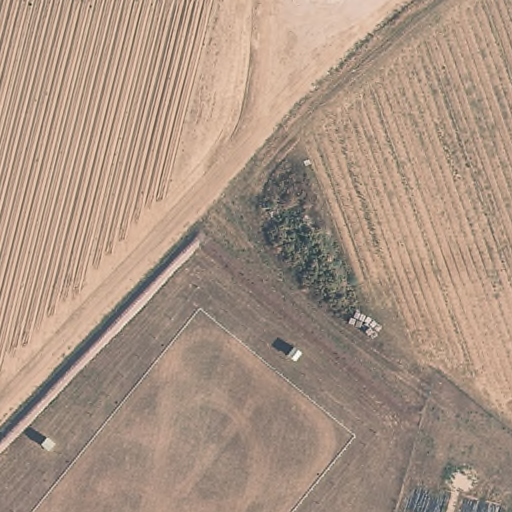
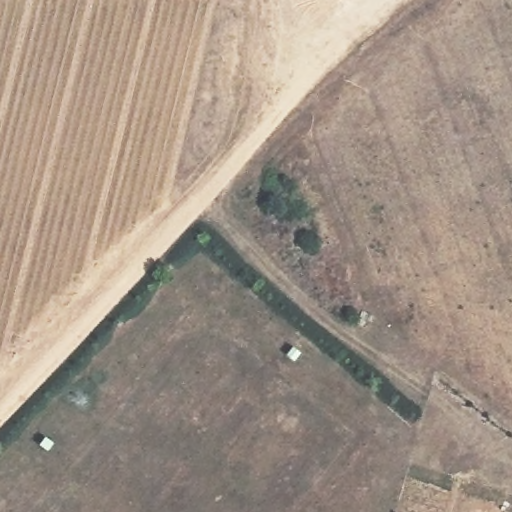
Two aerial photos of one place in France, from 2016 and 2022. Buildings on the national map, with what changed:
[]

